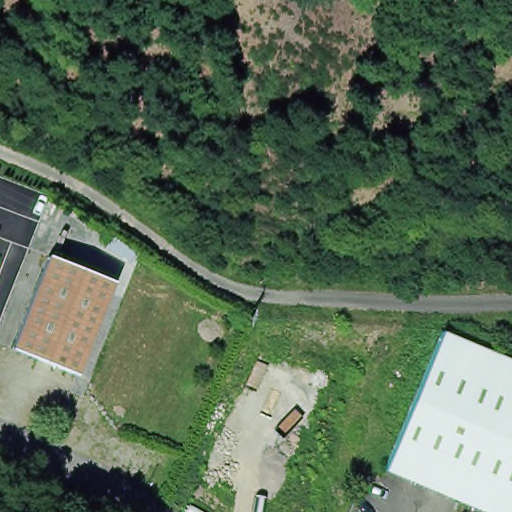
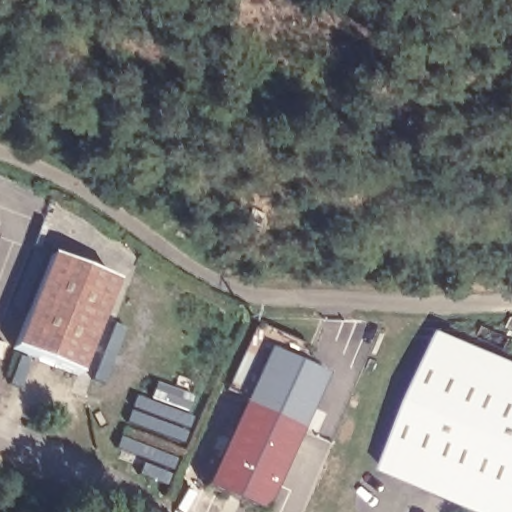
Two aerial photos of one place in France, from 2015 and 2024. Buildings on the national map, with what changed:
unchanged [(78,372),(14,346),(51,254),(116,280),(78,372)]
new [(113,323),(125,329),(105,384),(91,378),(113,323)]
unchanged [(448,332),(512,359),(512,452),(483,510),(389,471),(448,332)]
new [(245,405),(273,349),(330,377),(305,432),(245,405)]
new [(135,395),(148,400),(155,382),(185,395),(182,403),(180,402),(176,410),(193,417),(182,445),(125,422),(135,395)]
new [(269,512),(262,512),(208,487),(245,405),(305,432),(269,512)]
new [(120,435),(177,458),(165,487),(136,476),(143,461),(115,448),(120,435)]
unchanged [(512,452),(512,512),(489,512),(483,510),(512,452)]

